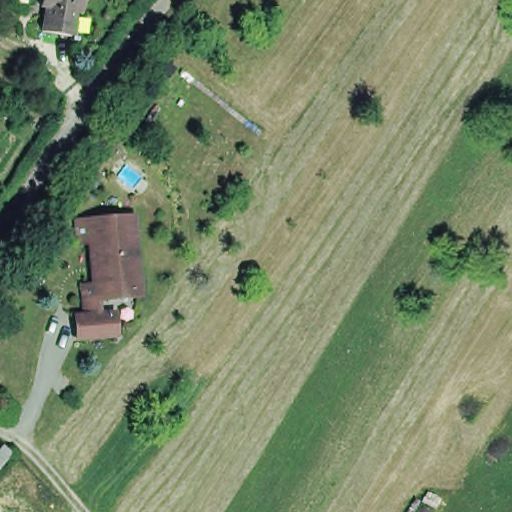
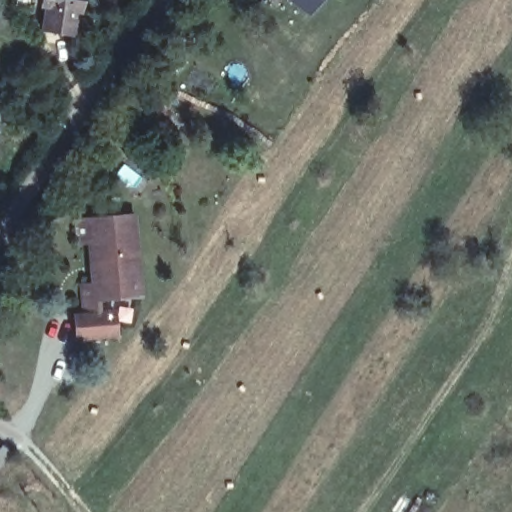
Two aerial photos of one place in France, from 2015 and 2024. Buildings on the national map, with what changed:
unchanged [(83,0),(81,11),(76,10),(72,35),(43,31),(47,5),(42,5),(42,0),(83,0)]
new [(282,0),(322,0),(312,20),(282,0)]
unchanged [(74,239),(72,216),(136,211),(143,296),(100,302),(100,311),(120,309),(120,335),(72,337),(70,312),(80,310),(78,281),(88,280),(85,238),(74,239)]

